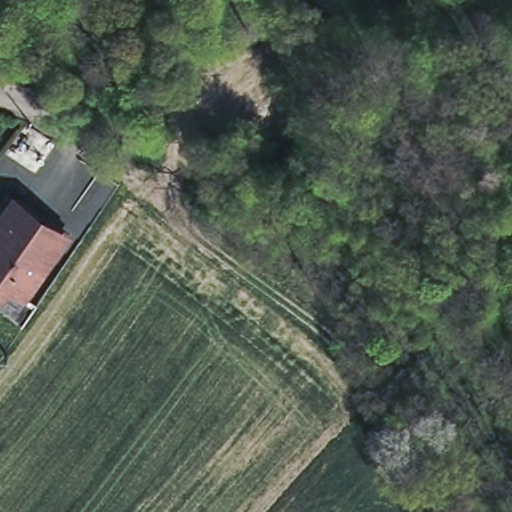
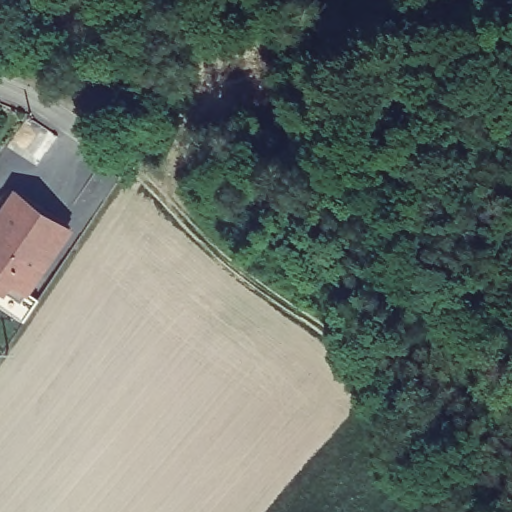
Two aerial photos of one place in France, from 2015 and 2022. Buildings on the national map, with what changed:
unchanged [(0,224),(0,210),(17,185),(71,222),(42,265),(33,260),(57,224),(20,199),(2,225),(0,224)]
unchanged [(20,199),(57,224),(33,260),(42,265),(20,296),(0,282),(0,224),(2,225),(20,199)]

